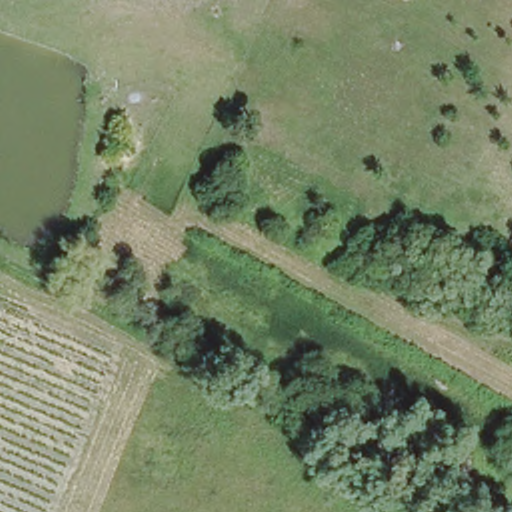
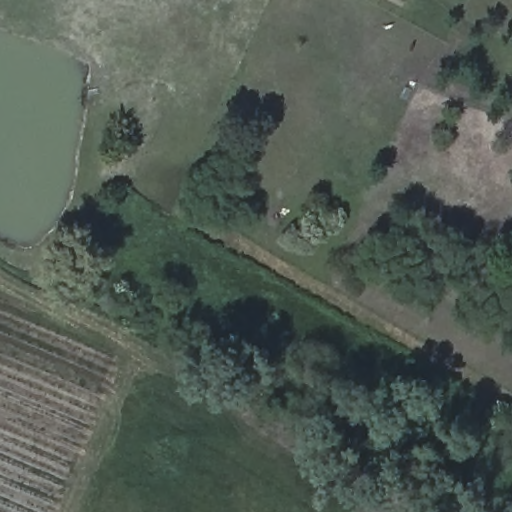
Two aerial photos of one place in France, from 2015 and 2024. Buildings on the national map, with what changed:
[]

